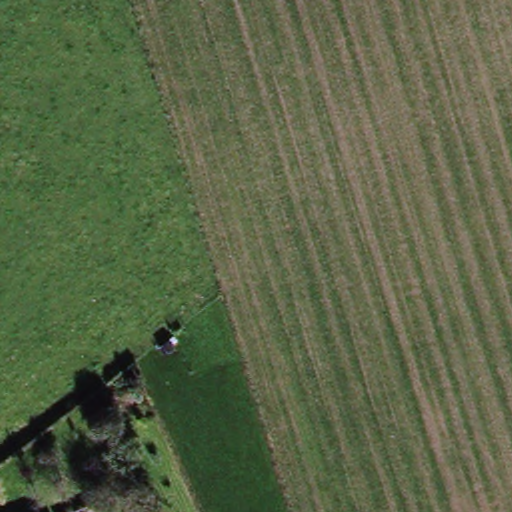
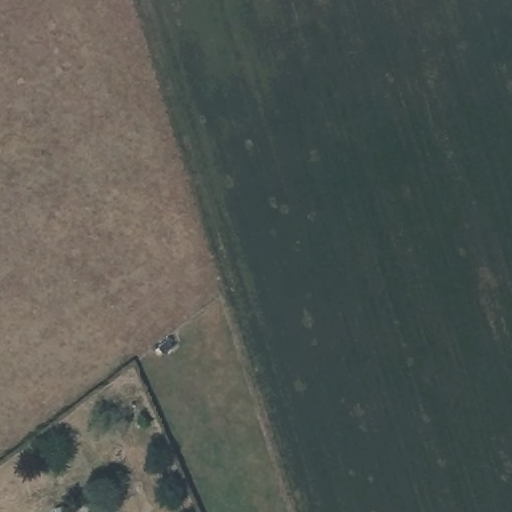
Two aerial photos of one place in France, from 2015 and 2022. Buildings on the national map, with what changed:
[]

